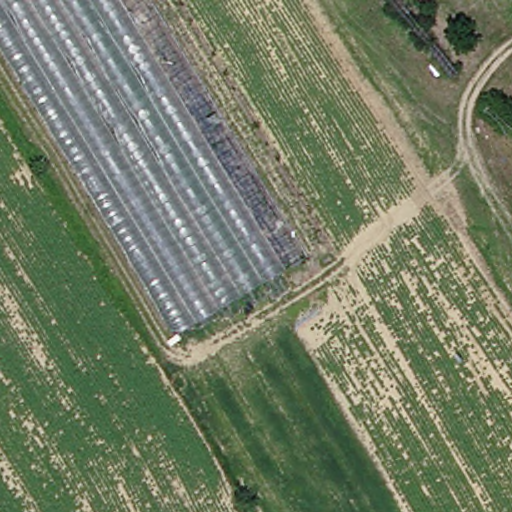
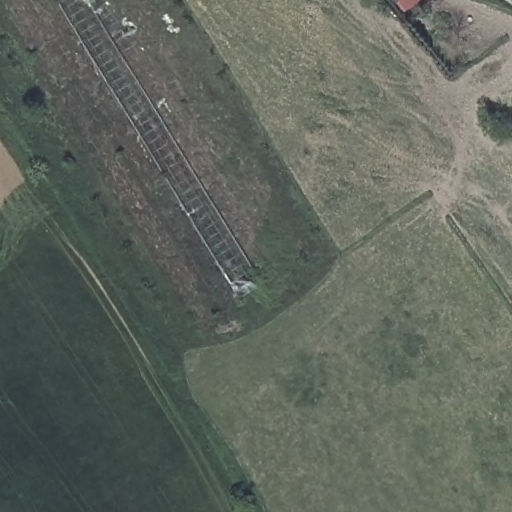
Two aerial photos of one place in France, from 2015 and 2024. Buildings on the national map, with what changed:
demolished [(0,50),(0,0),(174,0),(322,247),(174,336),(0,50)]
new [(100,0),(95,5),(257,278),(237,289),(59,0),(100,0)]

